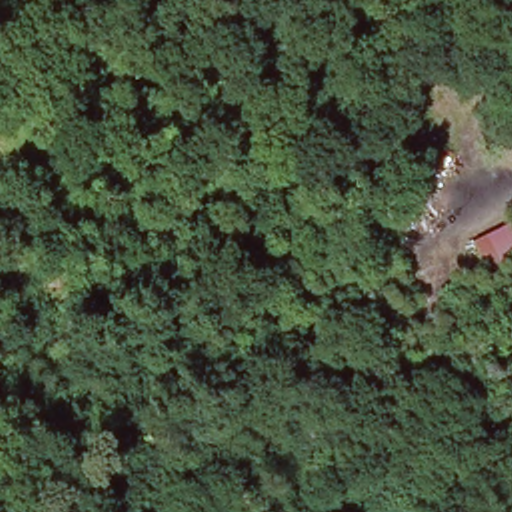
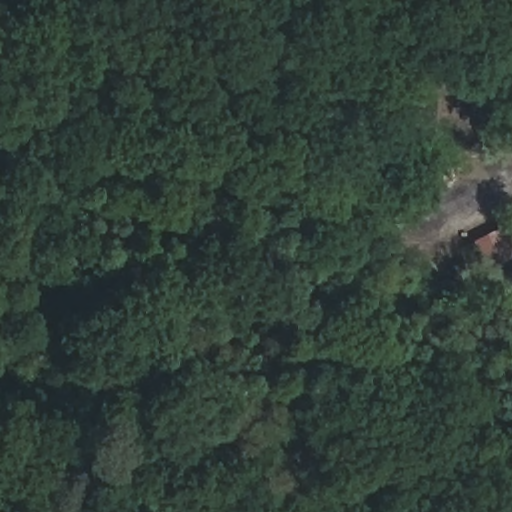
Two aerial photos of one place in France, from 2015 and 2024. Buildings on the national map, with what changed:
unchanged [(497,215),(508,237),(473,254),(463,232),(497,215)]

